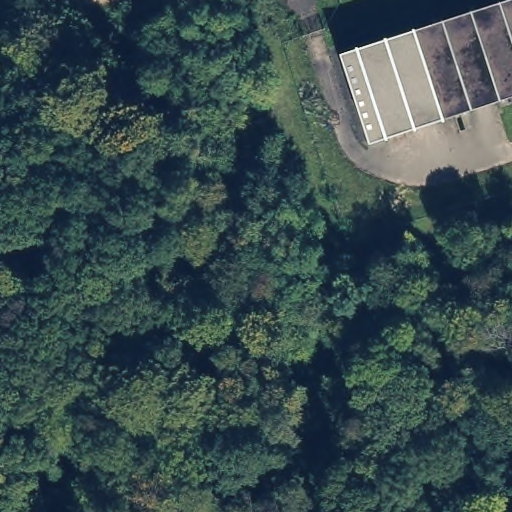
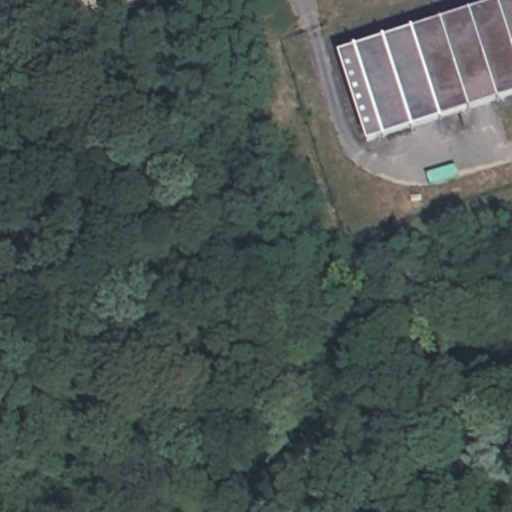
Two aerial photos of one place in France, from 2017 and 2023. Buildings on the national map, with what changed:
unchanged [(359,146),(328,49),(489,0),(512,0),(512,97),(359,146)]

